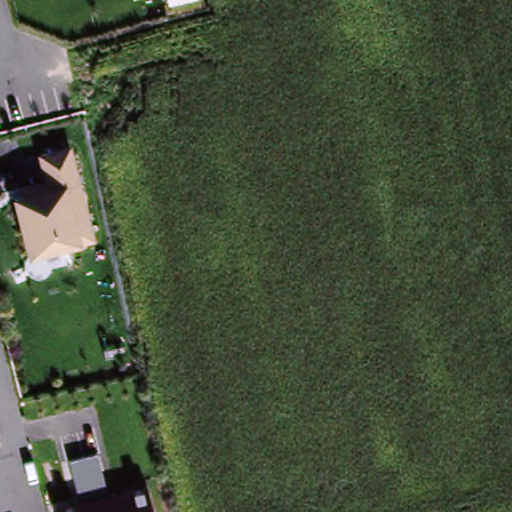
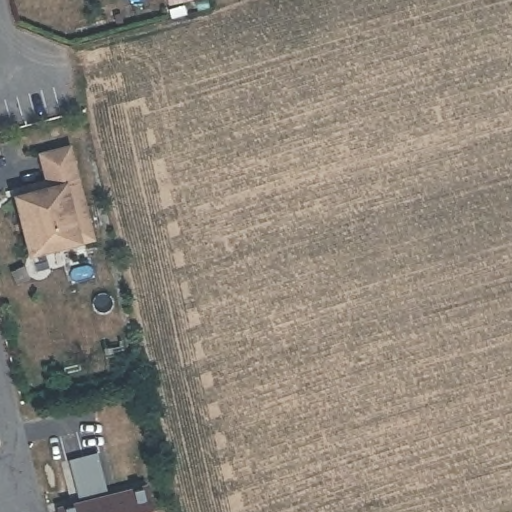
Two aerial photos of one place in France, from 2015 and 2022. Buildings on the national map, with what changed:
unchanged [(48,189),(38,154),(71,145),(96,241),(28,258),(10,197),(48,189)]
unchanged [(68,460),(96,453),(109,493),(146,484),(155,512),(56,512),(55,506),(78,501),(68,460)]

